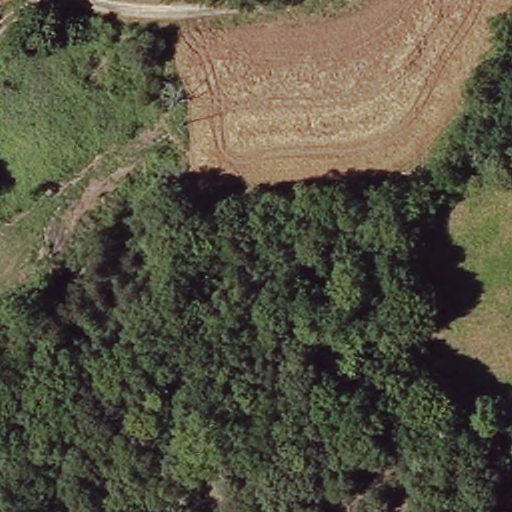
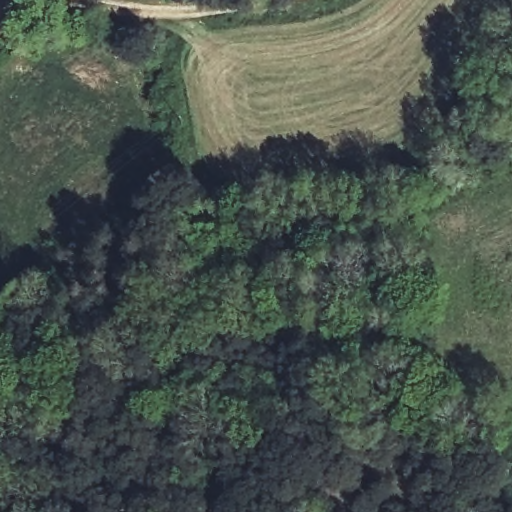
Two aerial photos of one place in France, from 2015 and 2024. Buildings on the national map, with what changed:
[]

